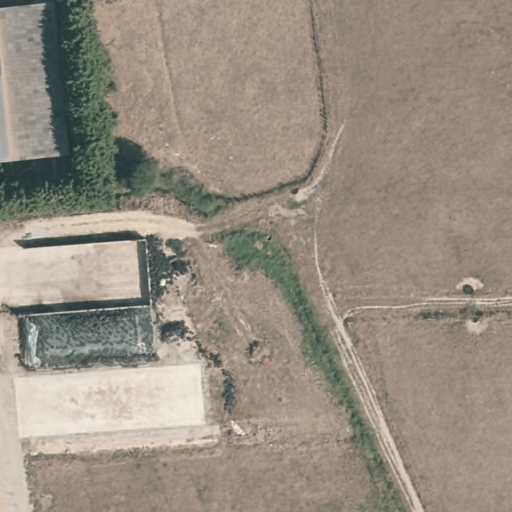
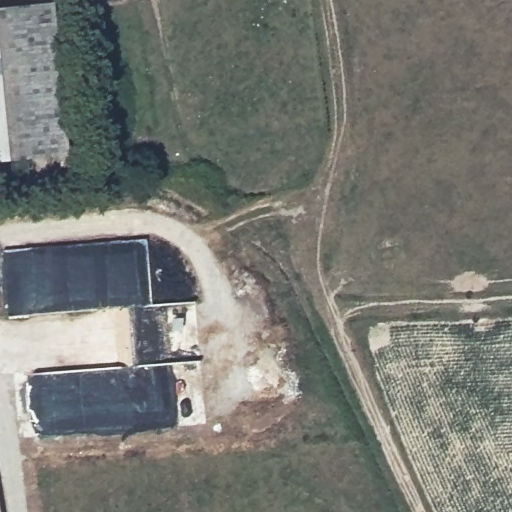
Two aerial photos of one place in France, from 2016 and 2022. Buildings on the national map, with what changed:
unchanged [(50,2),(69,150),(0,160),(0,9),(50,2)]

